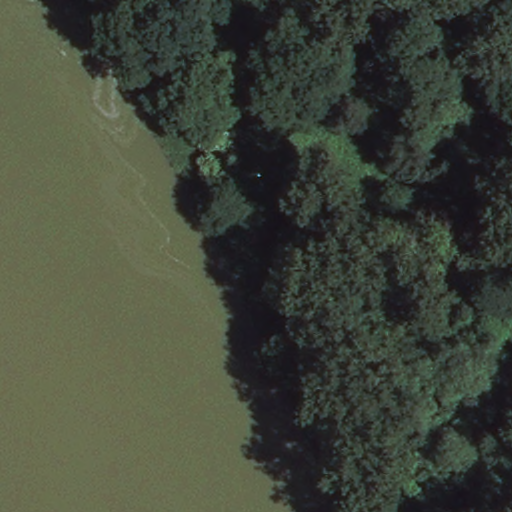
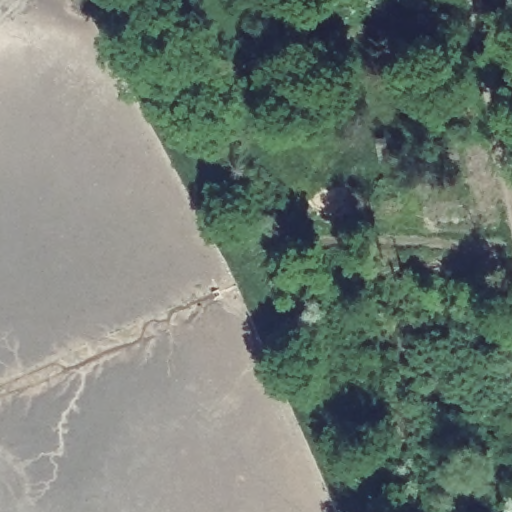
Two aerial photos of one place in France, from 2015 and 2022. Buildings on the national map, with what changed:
unchanged [(389,134),(402,172),(389,177),(376,139),(389,134)]

